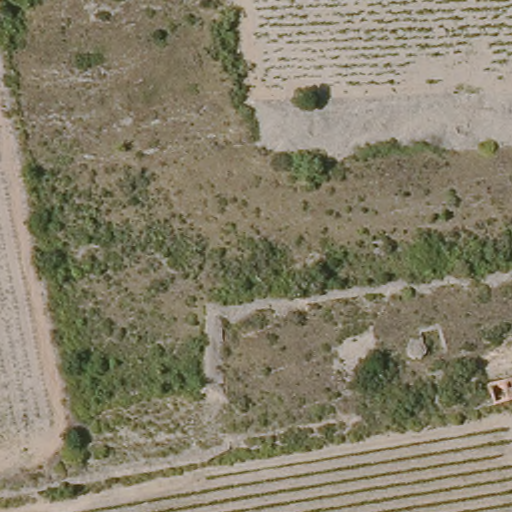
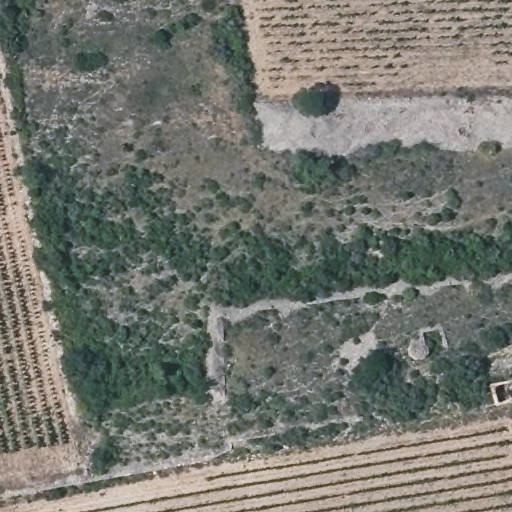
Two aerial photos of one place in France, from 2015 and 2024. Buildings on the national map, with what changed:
unchanged [(496,398),(492,376),(512,372),(512,395),(496,398)]

